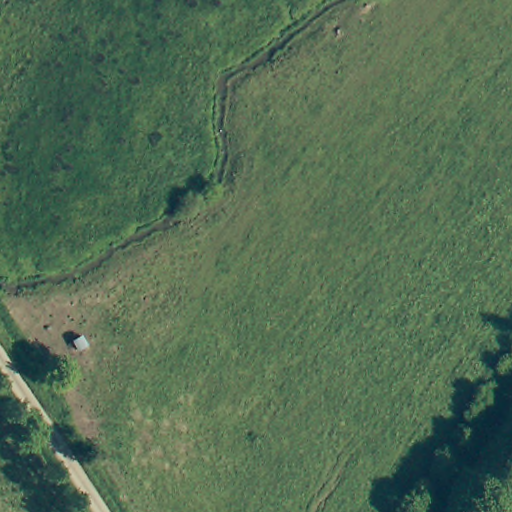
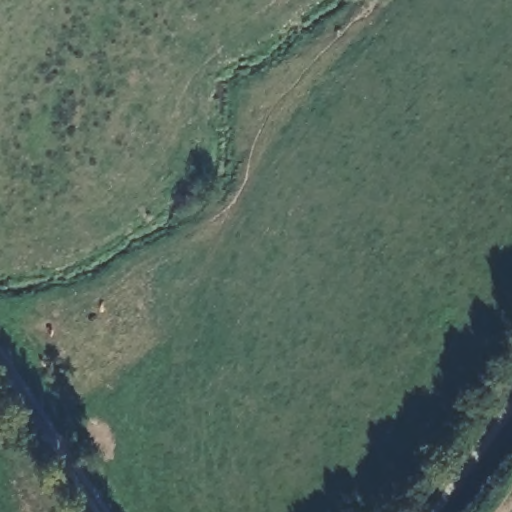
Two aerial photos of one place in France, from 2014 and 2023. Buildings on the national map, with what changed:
[]

